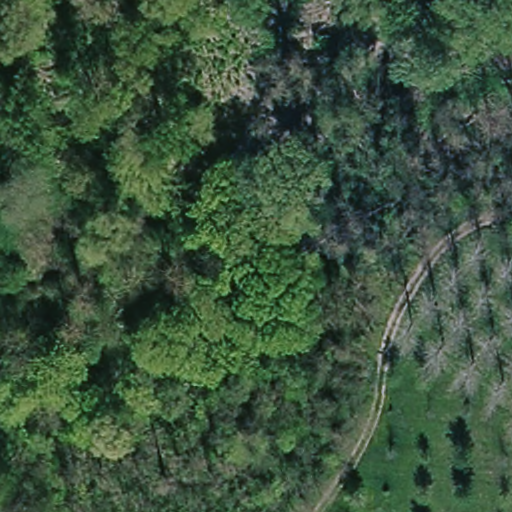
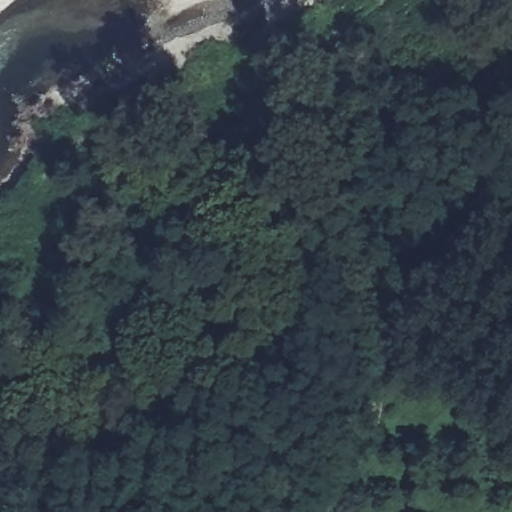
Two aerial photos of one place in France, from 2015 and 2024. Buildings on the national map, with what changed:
[]

